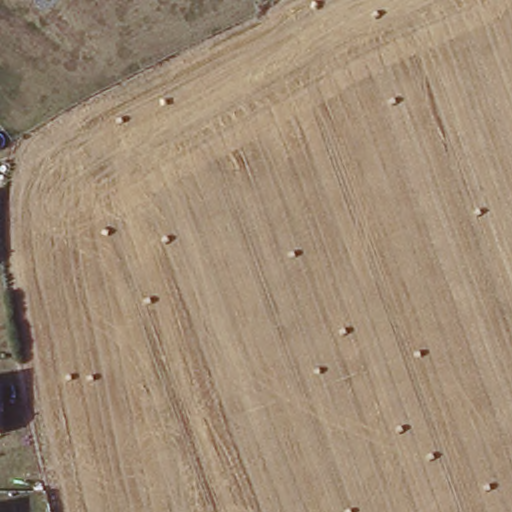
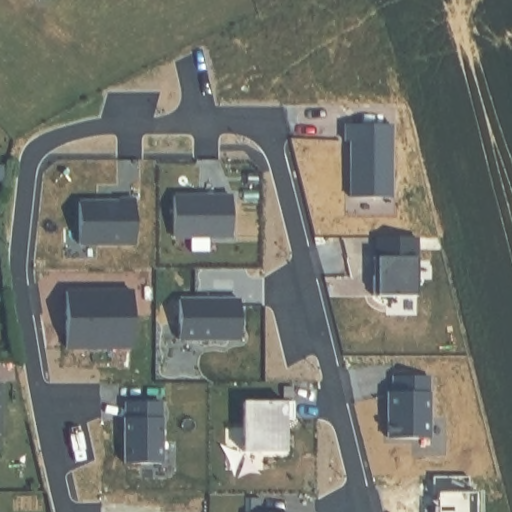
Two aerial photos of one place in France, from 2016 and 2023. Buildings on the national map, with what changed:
new [(395,126),(394,201),(352,199),(352,143),(345,142),(345,126),(395,126)]
new [(235,194),(235,236),(180,236),(181,195),(235,194)]
new [(86,201),(125,201),(126,198),(140,198),(138,242),(85,242),(86,201)]
new [(421,297),(379,296),(379,265),(383,264),(384,237),(421,238),(421,297)]
new [(137,290),(137,344),(71,344),(71,289),(137,290)]
new [(182,298),(242,299),(241,340),(182,339),(182,298)]
new [(432,438),(392,437),(391,393),(398,393),(398,377),(433,377),(432,438)]
unchanged [(1,436),(0,436),(0,384),(1,384),(1,436)]
new [(132,416),(132,400),(168,400),(168,462),(131,461),(131,416),(132,416)]
new [(300,402),(299,419),(292,418),(291,451),(250,451),(250,401),(300,402)]

